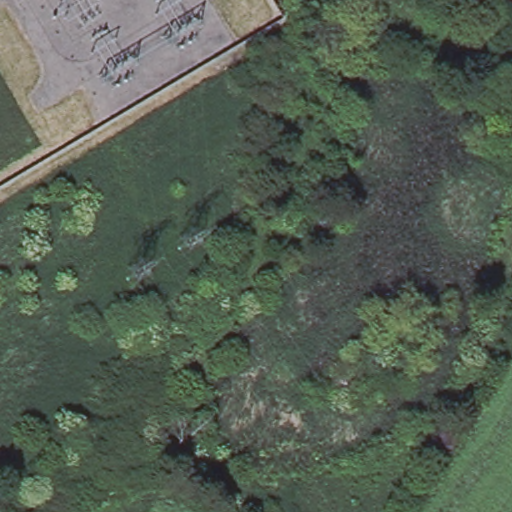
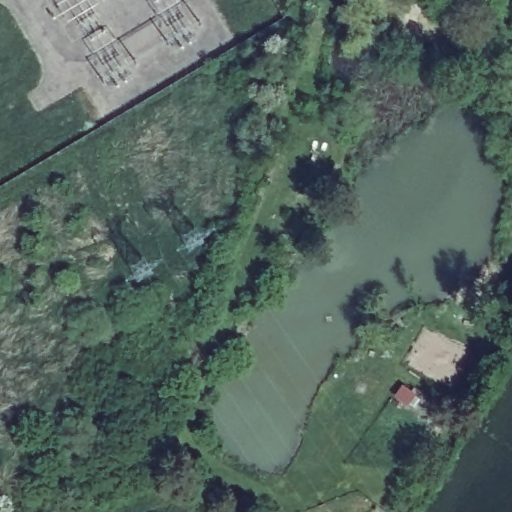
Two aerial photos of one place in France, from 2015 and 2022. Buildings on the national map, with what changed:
unchanged [(283,204),(292,190),(304,200),(295,210),(283,204)]

